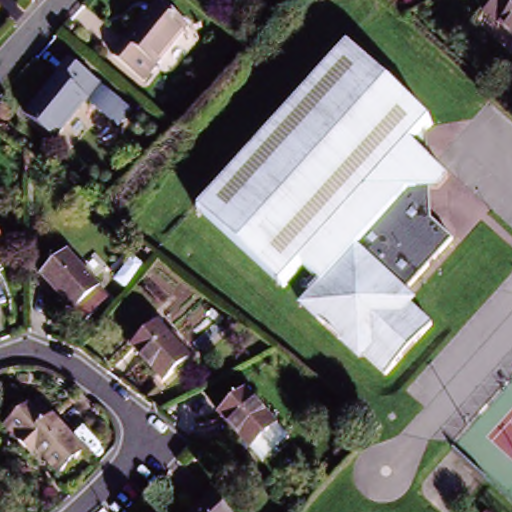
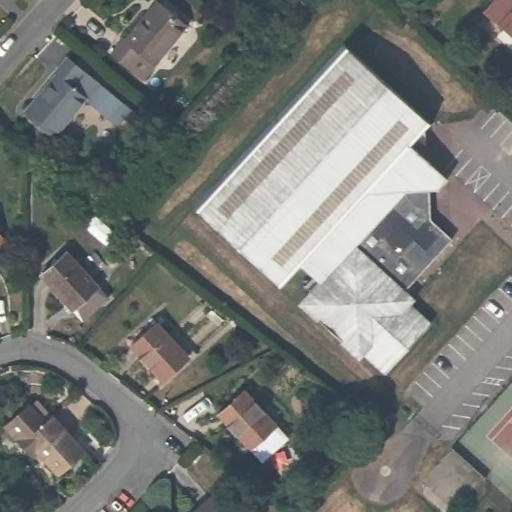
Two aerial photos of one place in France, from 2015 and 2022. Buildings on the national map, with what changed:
unchanged [(497,30),(483,16),(496,0),(512,0),(512,36),(502,25),(497,30)]
unchanged [(154,69),(158,73),(143,89),(105,60),(120,42),(126,46),(155,5),(185,29),(154,69)]
unchanged [(413,150),(448,181),(439,192),(426,193),(427,207),(432,212),(432,223),(454,243),(407,296),(415,303),(411,307),(434,327),(389,378),(366,358),(362,361),(304,309),(323,288),(305,271),(285,293),(196,213),(343,48),(432,127),(413,150)]
unchanged [(91,103),(86,99),(55,142),(27,119),(58,77),(55,74),(67,58),(104,88),(91,103)]
unchanged [(29,91),(21,84),(29,74),(37,81),(29,91)]
unchanged [(11,242),(0,253),(0,232),(11,242)]
unchanged [(75,313),(45,280),(69,257),(100,290),(75,313)]
unchanged [(164,382),(129,348),(154,325),(188,357),(164,382)]
unchanged [(269,460),(256,448),(222,416),(248,392),(281,425),(293,435),(269,460)]
unchanged [(56,481),(34,457),(29,462),(3,433),(25,412),(27,414),(34,407),(48,421),(80,458),(56,481)]
unchanged [(210,501),(219,512),(198,512),(210,501)]

